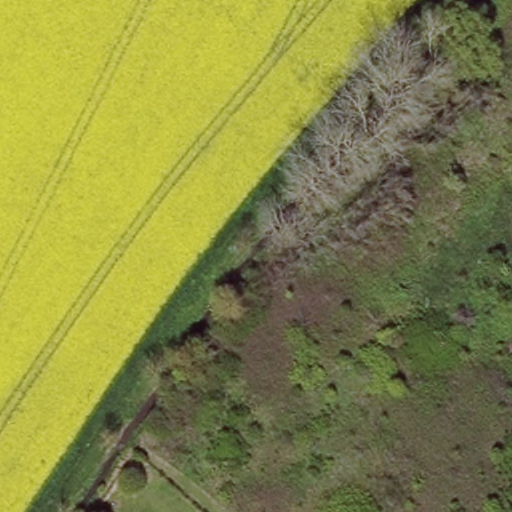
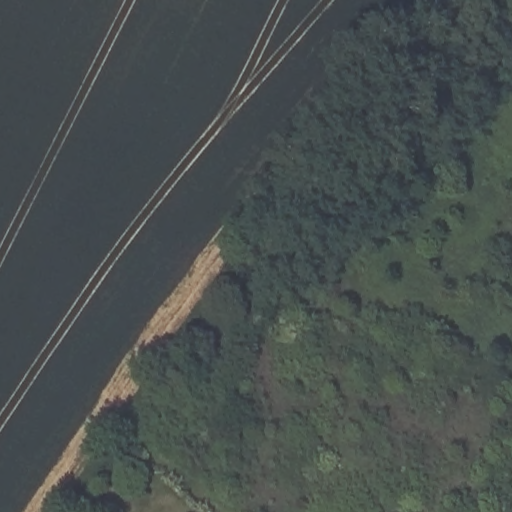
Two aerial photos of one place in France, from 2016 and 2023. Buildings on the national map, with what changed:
[]

